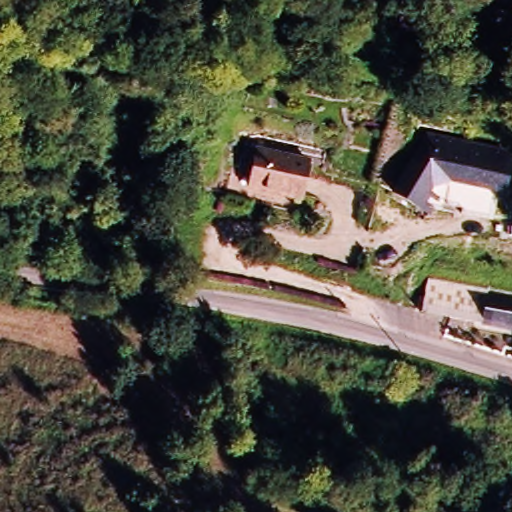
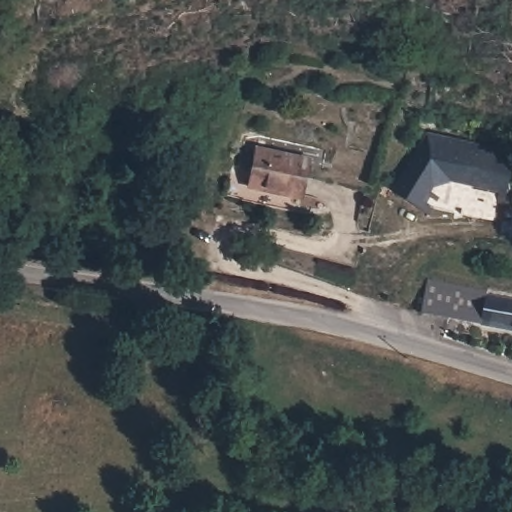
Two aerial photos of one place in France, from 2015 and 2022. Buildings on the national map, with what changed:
unchanged [(508,148),(499,185),(450,173),(434,177),(421,201),(397,185),(430,127),(508,148)]
unchanged [(303,199),(250,190),(257,151),(310,160),(303,199)]
unchanged [(497,193),(493,211),(439,197),(448,181),(497,193)]
unchanged [(512,326),(417,310),(422,279),(512,294),(512,326)]

